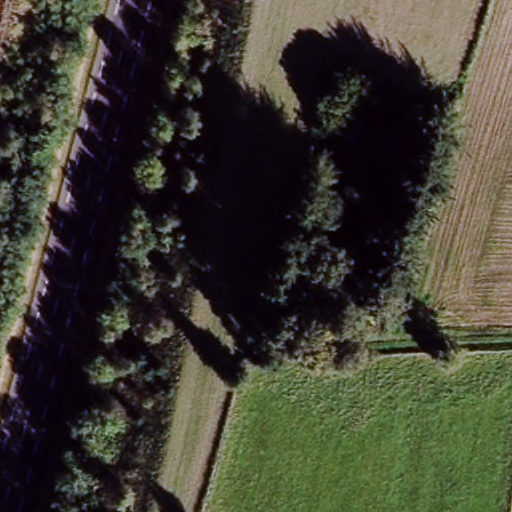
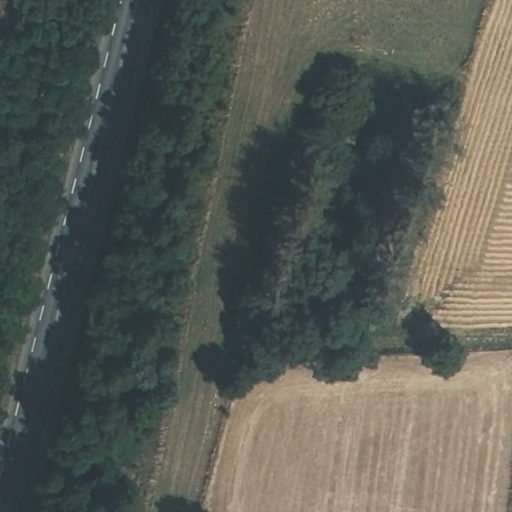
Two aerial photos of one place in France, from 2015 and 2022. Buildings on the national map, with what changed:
unchanged [(344,114),(361,119),(352,144),(335,138),(344,114)]

